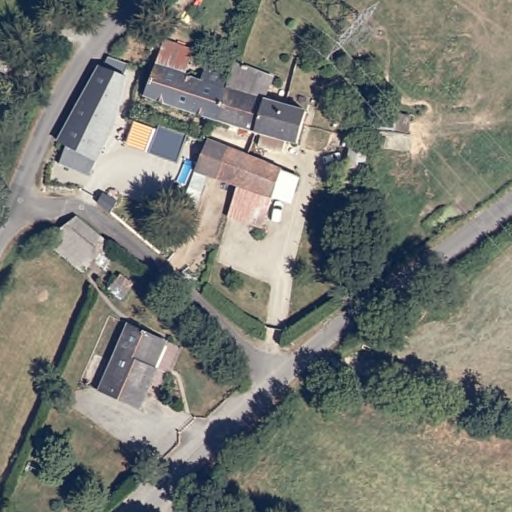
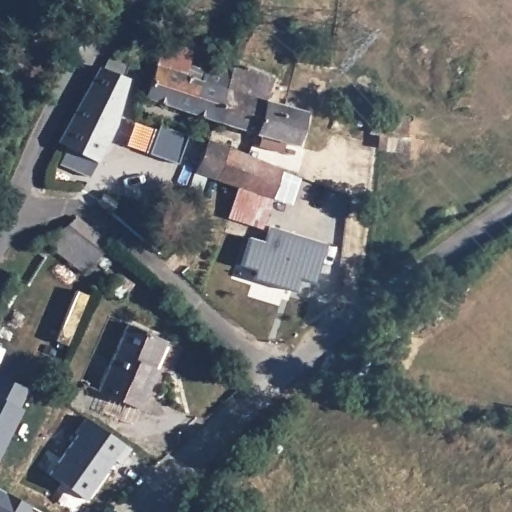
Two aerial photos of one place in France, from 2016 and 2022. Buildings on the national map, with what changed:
unchanged [(150,96),(167,43),(195,53),(187,76),(205,81),(209,68),(232,76),(224,100),(216,119),(150,96)]
demolished [(414,85),(390,84),(391,50),(416,49),(414,85)]
unchanged [(107,56),(126,69),(115,125),(95,162),(58,142),(107,56)]
unchanged [(216,119),(224,100),(232,76),(236,66),(272,78),(267,102),(260,100),(249,130),(216,119)]
unchanged [(307,115),(297,146),(249,130),(260,100),(267,102),(283,108),(307,115)]
unchanged [(176,164),(147,153),(158,125),(174,131),(187,135),(176,164)]
unchanged [(207,188),(192,185),(201,142),(217,148),(293,175),(282,218),(265,211),(260,230),(226,220),(231,196),(207,188)]
unchanged [(96,204),(102,194),(116,204),(110,217),(96,204)]
unchanged [(107,252),(91,270),(59,242),(75,226),(107,252)]
new [(313,283),(297,278),(293,291),(252,279),(255,270),(240,265),(249,236),(265,242),(270,227),(270,226),(326,243),(313,283)]
unchanged [(104,393),(132,325),(164,338),(152,367),(157,369),(141,409),(104,393)]
new [(27,388),(17,406),(22,408),(0,453),(0,376),(27,388)]
new [(86,499),(49,474),(77,434),(75,432),(86,417),(124,444),(130,448),(120,464),(114,460),(86,499)]
new [(27,512),(0,512),(0,488),(31,506),(27,512)]

